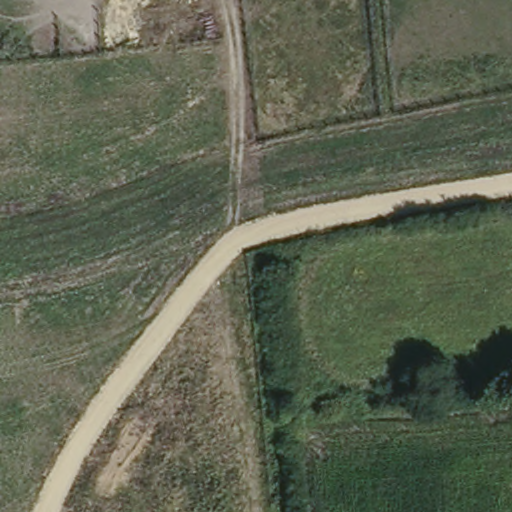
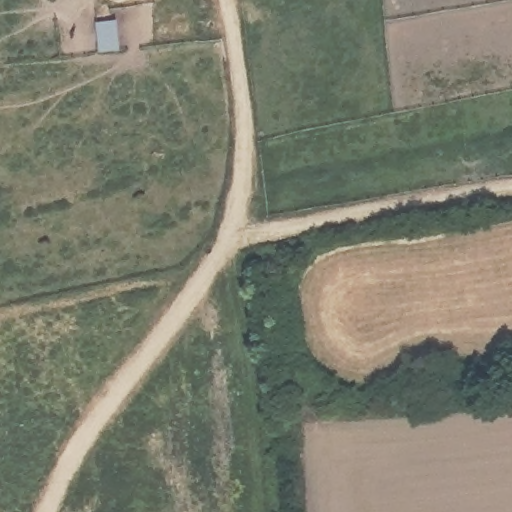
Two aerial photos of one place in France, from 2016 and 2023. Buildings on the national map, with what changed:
unchanged [(94,21),(119,19),(121,50),(96,50),(94,21)]

